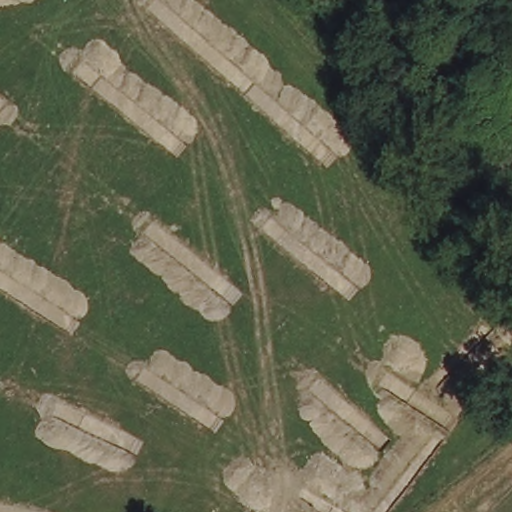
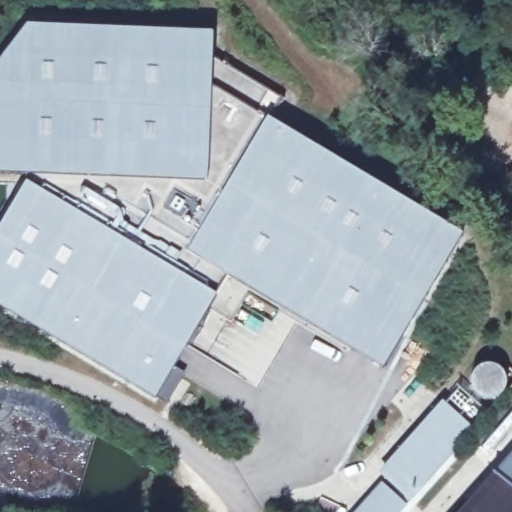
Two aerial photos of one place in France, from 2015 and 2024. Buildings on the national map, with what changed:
new [(214,294),(72,218),(24,311),(0,300),(0,221),(24,180),(25,171),(0,171),(0,56),(23,25),(206,30),(206,55),(278,97),(264,117),(459,232),(382,365),(226,273),(214,294)]
new [(72,218),(336,359),(289,451),(24,311),(72,218)]
new [(492,367),(497,368),(502,370),(504,373),(507,377),(508,383),(507,388),(505,395),(502,398),(498,401),(489,401),(483,399),(477,396),(474,393),(473,389),(472,384),(474,377),(476,372),(479,370),(482,368),(488,367),(492,367)]
new [(442,401),(473,428),(411,501),(379,473),(442,401)]
new [(512,484),(512,512),(458,512),(496,469),(512,484)]
new [(379,483),(404,506),(400,512),(355,512),(379,483)]

